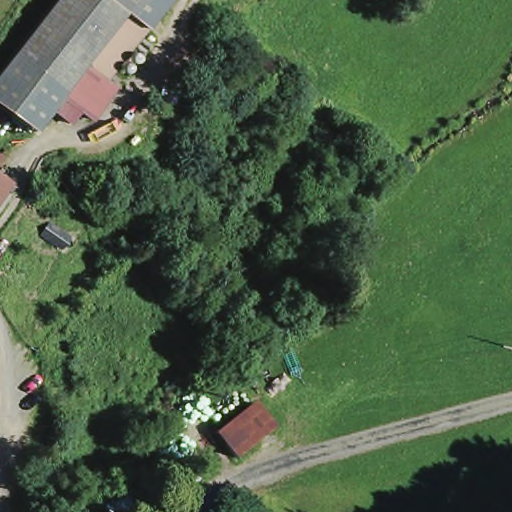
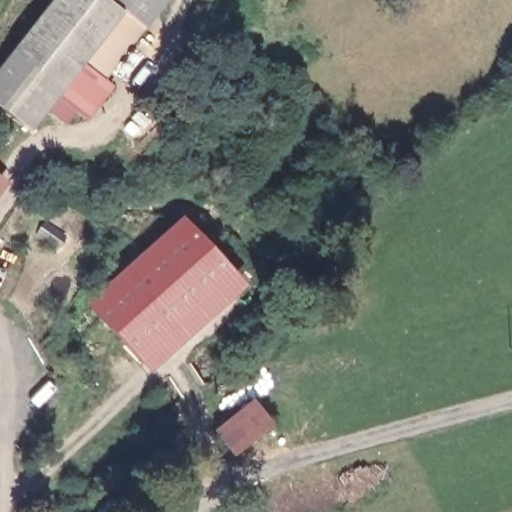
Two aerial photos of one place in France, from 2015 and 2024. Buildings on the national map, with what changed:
unchanged [(115,85),(89,123),(58,100),(34,132),(0,107),(0,69),(54,0),(168,0),(108,81),(115,85)]
unchanged [(4,189),(0,195),(0,187),(4,189)]
new [(182,217),(246,298),(141,387),(77,315),(182,217)]
unchanged [(268,389),(288,421),(240,454),(219,429),(268,389)]

